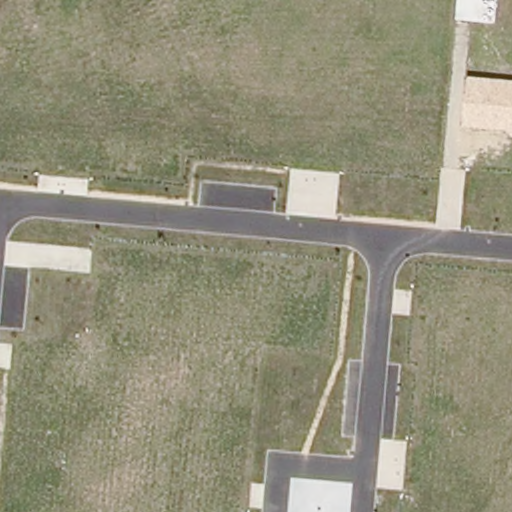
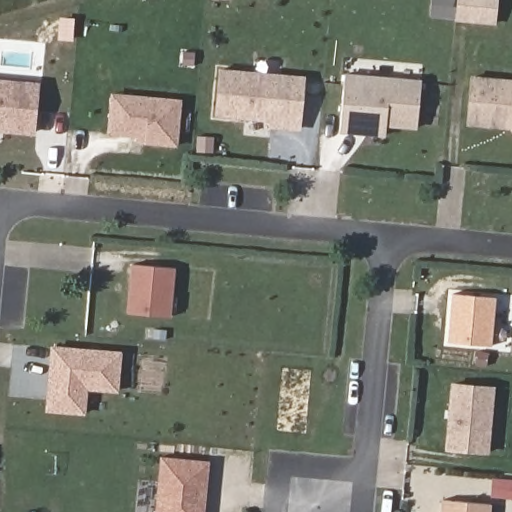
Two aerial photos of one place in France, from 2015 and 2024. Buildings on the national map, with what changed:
new [(430,19),(432,0),(499,0),(497,25),(430,19)]
new [(208,115),(212,70),(244,73),(246,58),(284,61),(282,75),(306,77),(302,128),(274,126),(263,125),(263,118),(208,115)]
new [(358,131),(341,130),(345,75),(421,80),(417,125),(387,123),(387,134),(358,131)]
new [(41,83),(37,136),(0,132),(0,79),(41,83)]
new [(182,101),(178,147),(137,142),(137,137),(107,135),(111,93),(182,101)]
new [(173,267),(171,317),(127,312),(131,265),(173,267)]
new [(497,297),(494,346),(451,343),(453,291),(497,297)]
new [(124,351),(119,392),(87,392),(86,414),(47,410),(52,348),(124,351)]
new [(452,386),(492,389),(487,453),(447,450),(452,386)]
new [(213,462),(209,512),(156,512),(160,457),(213,462)]
new [(512,481),(512,498),(493,496),(495,480),(512,481)]
new [(442,501),(490,505),(489,512),(442,512),(442,501)]

